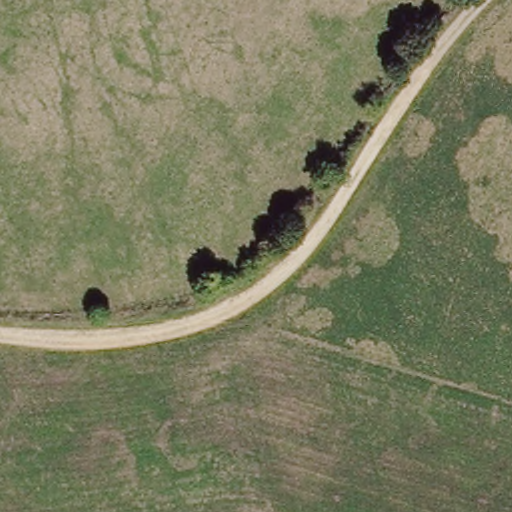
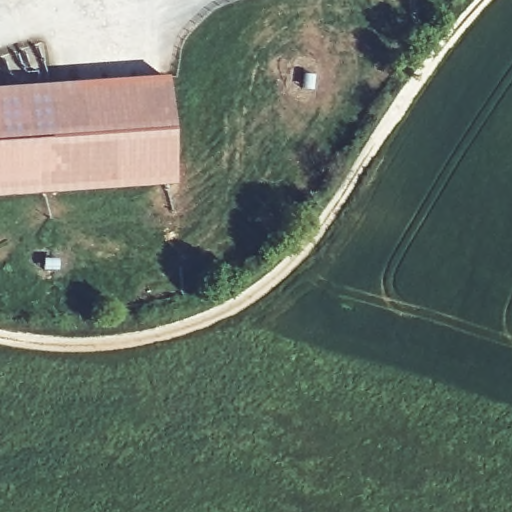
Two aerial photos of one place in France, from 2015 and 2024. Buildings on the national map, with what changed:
new [(177,184),(0,197),(0,88),(169,75),(177,184)]

